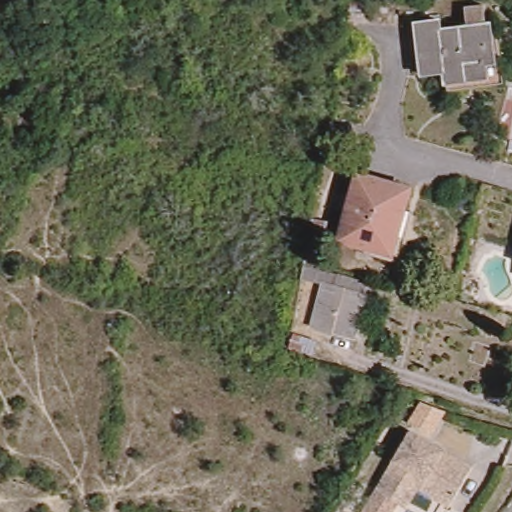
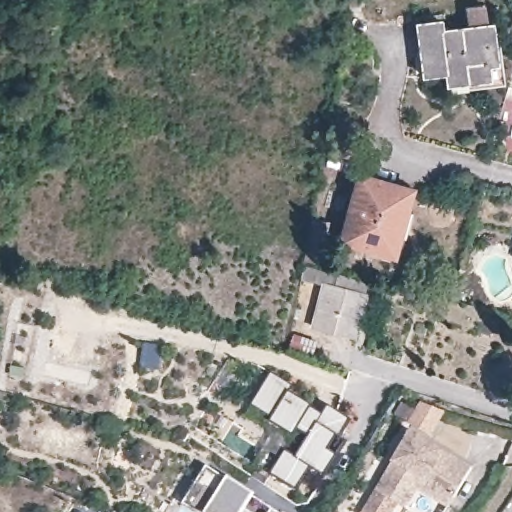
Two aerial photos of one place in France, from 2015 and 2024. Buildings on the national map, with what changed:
unchanged [(503,78),(502,79),(475,82),(453,84),(452,72),(432,74),(431,74),(429,74),(429,73),(429,72),(424,25),(424,24),(426,23),(447,20),(448,31),(497,25),(501,63),(503,76),(503,78)]
unchanged [(0,131),(0,95),(27,103),(18,136),(0,131)]
unchanged [(394,258),(341,242),(360,176),(414,192),(394,258)]
unchanged [(354,352),(313,334),(329,295),(320,290),(325,279),(373,299),(369,309),(371,310),(354,352)]
unchanged [(314,343),(310,356),(286,349),(291,334),(314,343)]
new [(292,392),(326,413),(331,406),(354,420),(344,437),(349,441),(327,477),(298,457),(309,437),(299,431),(295,436),(270,421),(273,417),(253,404),(273,372),(296,387),(292,392)]
unchanged [(393,462),(409,431),(444,452),(444,456),(469,469),(446,511),(416,494),(405,512),(402,512),(398,510),(397,512),(362,512),(393,462)]
new [(208,465),(228,478),(231,474),(258,492),(255,495),(282,512),(198,512),(183,503),(208,465)]

